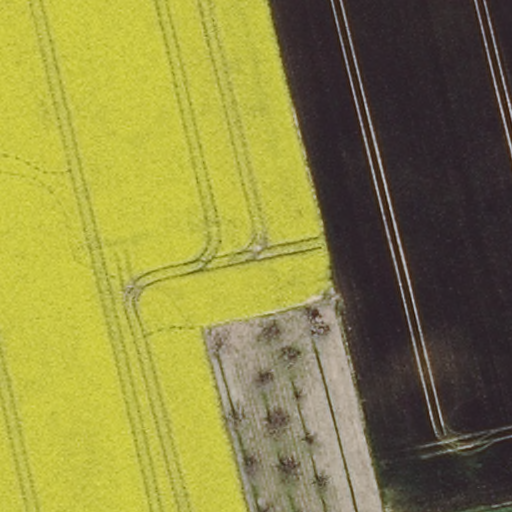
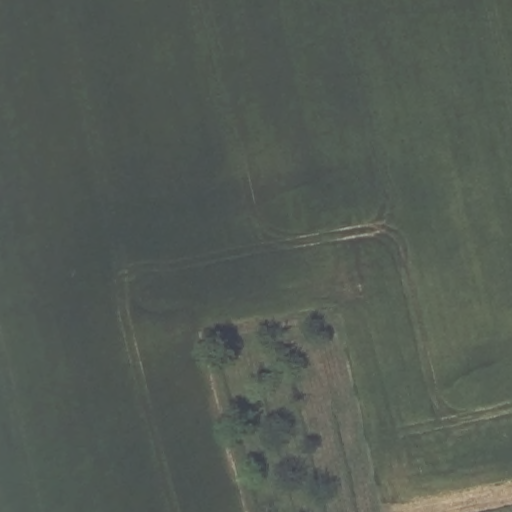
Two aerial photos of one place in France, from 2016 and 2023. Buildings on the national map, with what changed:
[]

